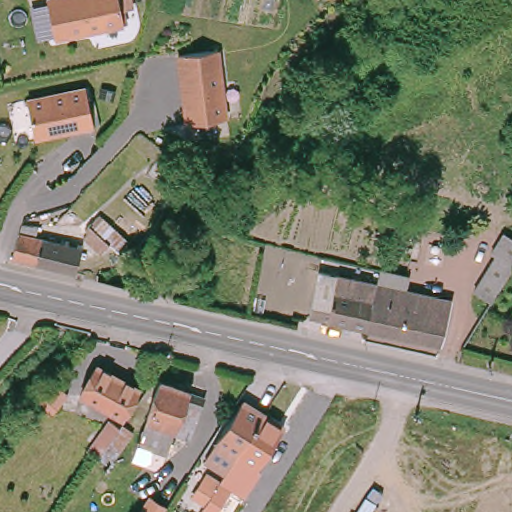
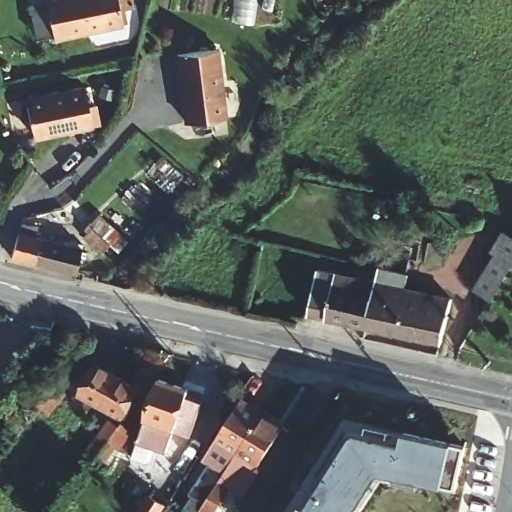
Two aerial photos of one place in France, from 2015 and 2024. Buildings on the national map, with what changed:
unchanged [(53,35),(44,0),(116,0),(121,19),(53,35)]
new [(36,36),(29,4),(45,1),(52,33),(36,36)]
unchanged [(213,46),(220,111),(181,116),(173,51),(213,46)]
unchanged [(84,84),(92,123),(35,135),(26,98),(84,84)]
unchanged [(82,239),(95,224),(126,250),(108,271),(81,248),(85,243),(82,239)]
unchanged [(80,255),(75,280),(8,267),(16,243),(19,234),(36,234),(34,247),(40,248),(80,255)]
unchanged [(472,289),(493,257),(488,254),(501,234),(512,241),(512,273),(494,302),(472,289)]
unchanged [(377,274),(407,281),(404,294),(450,304),(438,349),(365,333),(375,288),(377,274)]
unchanged [(365,333),(325,324),(306,320),(316,275),(335,280),(375,288),(365,333)]
unchanged [(110,467),(98,459),(92,456),(95,452),(91,449),(115,417),(81,397),(96,369),(139,391),(123,420),(125,422),(122,426),(133,434),(110,467)]
unchanged [(190,391),(190,393),(205,398),(191,441),(175,435),(167,456),(154,451),(150,462),(145,467),(131,462),(138,443),(139,443),(161,382),(190,391)]
unchanged [(68,397),(56,411),(43,400),(55,387),(68,397)]
unchanged [(210,506),(198,498),(204,489),(212,476),(217,479),(222,472),(209,462),(247,403),(268,416),(288,429),(263,470),(254,464),(223,512),(206,512),(210,506)]
new [(455,488),(442,485),(382,472),(356,512),(295,512),(300,506),(305,510),(354,431),(401,444),(403,433),(452,443),(466,447),(455,488)]

